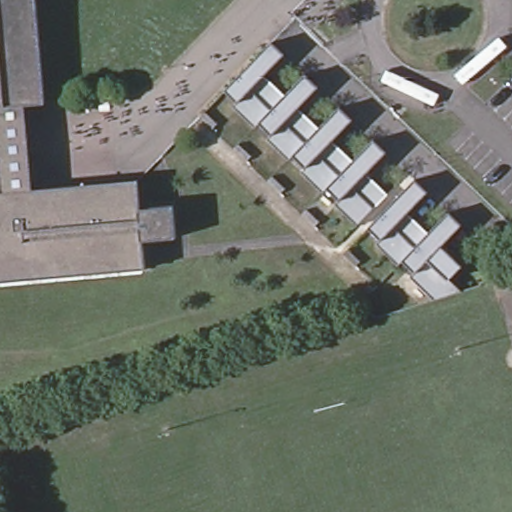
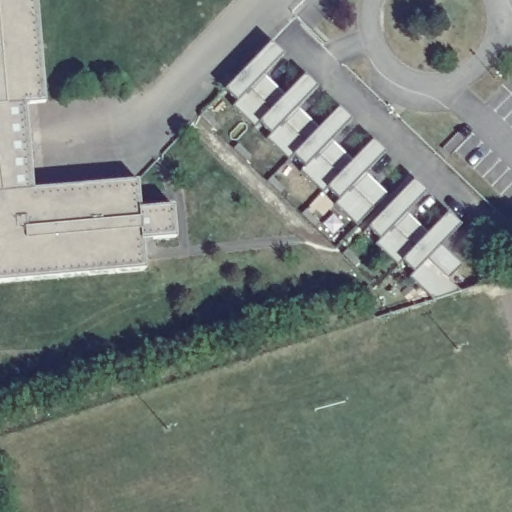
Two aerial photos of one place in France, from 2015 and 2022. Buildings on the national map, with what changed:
unchanged [(25,106),(34,189),(139,181),(141,209),(174,206),(176,238),(143,241),(146,270),(0,283),(0,0),(36,0),(45,104),(25,106)]
unchanged [(243,97),(230,86),(273,42),(286,54),(266,75),(243,98),(243,97)]
unchanged [(286,95),(306,74),(319,87),(299,107),(277,131),(276,130),(265,119),(264,118),(286,95)]
unchanged [(266,75),(286,95),(264,118),(265,119),(260,124),(238,102),(243,97),(243,98),(266,75)]
unchanged [(299,107),(321,127),(298,151),(299,152),(294,157),(272,135),(276,130),(277,131),(299,107)]
unchanged [(321,127),(341,107),(354,120),(334,141),(311,164),(311,163),(299,152),(298,151),(321,127)]
unchanged [(354,161),(374,140),(388,152),(368,174),(346,197),(344,196),(333,185),(332,184),(354,161)]
unchanged [(311,164),(334,141),(354,161),(332,184),(333,185),(329,189),(306,167),(311,163),(311,164)]
unchanged [(368,174),(389,194),(363,222),(339,200),(344,196),(346,197),(368,174)]
unchanged [(416,180),(429,192),(409,213),(387,237),(386,236),(374,224),(416,180)]
unchanged [(430,233),(450,212),(464,225),(443,246),(421,269),(420,268),(409,257),(408,257),(430,233)]
unchanged [(409,257),(404,262),(381,240),(386,236),(387,237),(409,213),(430,233),(408,257),(409,257)]
unchanged [(464,266),(454,276),(451,280),(467,287),(439,296),(428,284),(416,273),(420,268),(421,269),(443,246),(464,266)]

